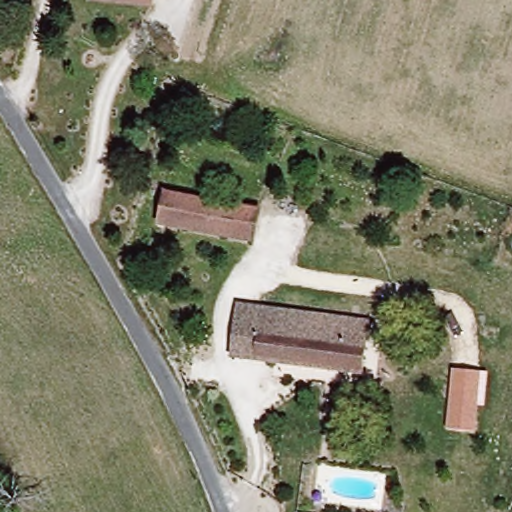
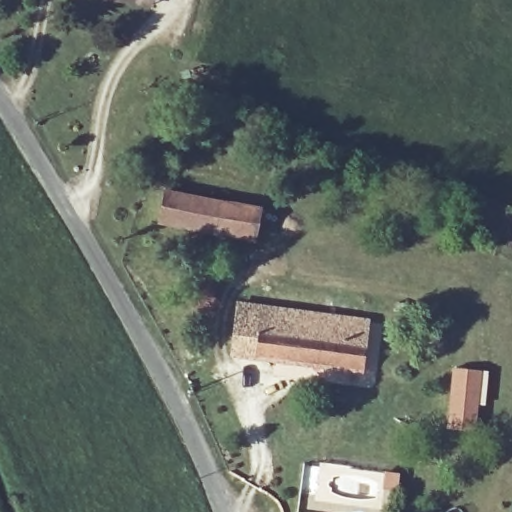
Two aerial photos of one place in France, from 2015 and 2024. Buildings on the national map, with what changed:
unchanged [(160,187),(258,211),(250,244),(151,219),(160,187)]
unchanged [(366,321),(355,378),(228,361),(240,304),(366,321)]
unchanged [(480,372),(475,432),(447,428),(452,369),(480,372)]

